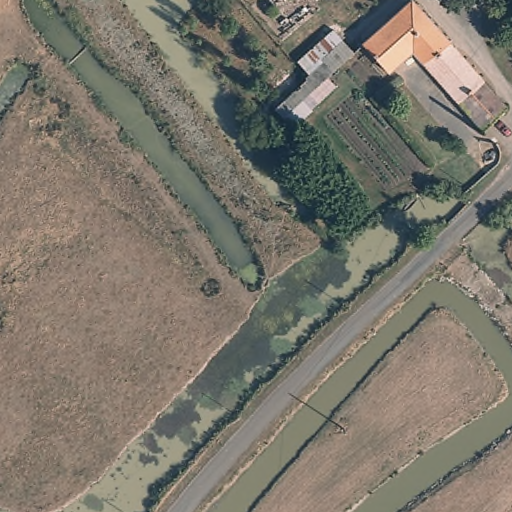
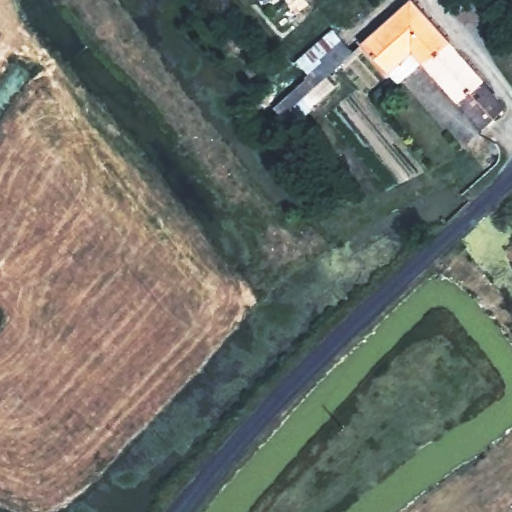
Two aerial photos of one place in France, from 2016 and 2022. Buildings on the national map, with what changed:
unchanged [(485,128),(416,47),(389,70),(364,42),(417,0),(508,109),(485,128)]
unchanged [(328,78),(335,88),(291,126),(274,107),(312,73),(299,62),(332,30),(353,51),(328,78)]

